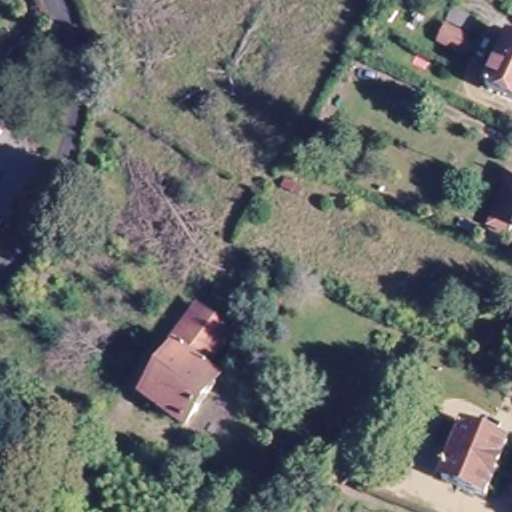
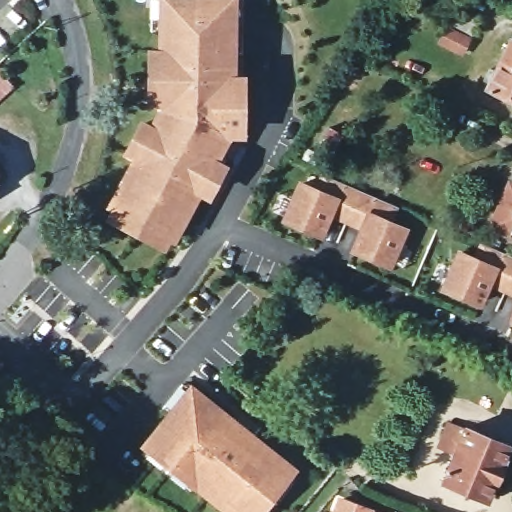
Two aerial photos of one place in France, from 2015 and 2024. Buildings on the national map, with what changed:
new [(245,74),(244,136),(230,136),(218,159),(227,165),(210,200),(200,194),(175,241),(170,240),(164,249),(97,218),(129,159),(120,154),(139,116),(149,121),(155,110),(155,106),(145,106),(145,47),(156,46),(158,0),(237,0),(236,74),(245,74)]
unchanged [(472,35),(448,23),(455,10),(478,23),(472,35)]
unchanged [(462,54),(439,41),(446,28),(470,40),(462,54)]
unchanged [(510,40),(512,41),(512,100),(487,88),(510,40)]
unchanged [(5,68),(23,88),(0,108),(0,72),(5,68)]
demolished [(329,159),(315,151),(329,128),(342,135),(329,159)]
new [(311,184),(318,172),(398,206),(393,220),(408,227),(391,269),(348,252),(357,228),(331,218),(322,240),(280,223),(297,179),(311,184)]
demolished [(293,194),(283,189),(287,181),(297,186),(293,194)]
unchanged [(491,226),(505,195),(510,184),(512,185),(512,234),(511,235),(491,226)]
new [(477,244),(512,258),(512,295),(490,287),(482,308),(438,290),(456,249),(473,255),(477,244)]
demolished [(178,349),(172,344),(199,309),(233,334),(207,369),(219,378),(185,427),(145,398),(178,349)]
new [(512,310),(512,322),(507,320),(512,310)]
new [(190,382),(298,469),(264,512),(223,512),(140,447),(190,382)]
unchanged [(448,482),(460,453),(445,447),(455,423),(512,446),(512,452),(492,499),(448,482)]
new [(338,495),(383,512),(332,512),(338,495)]

